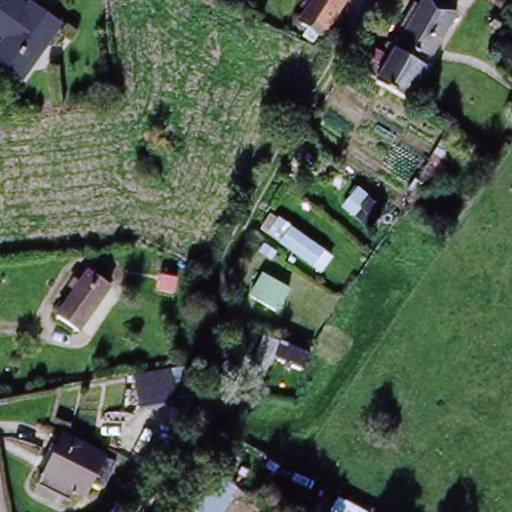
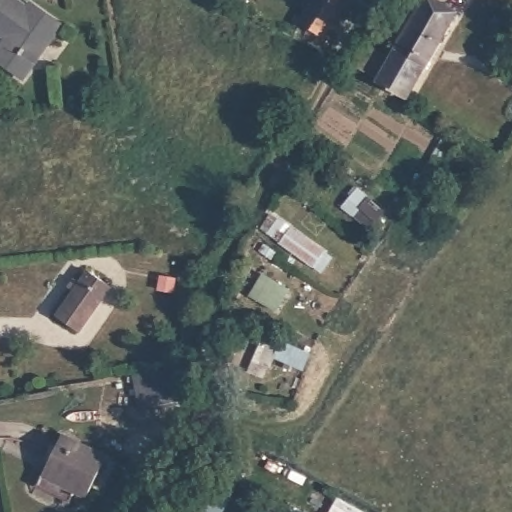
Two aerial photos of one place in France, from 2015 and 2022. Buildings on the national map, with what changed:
unchanged [(61,32),(19,81),(0,64),(0,38),(2,36),(0,35),(0,0),(10,0),(25,10),(30,6),(61,32)]
unchanged [(318,11),(316,10),(322,0),(352,0),(338,23),(336,22),(328,34),(311,22),(318,11)]
unchanged [(440,42),(427,64),(396,47),(399,42),(403,36),(406,30),(400,26),(416,0),(419,0),(423,2),(424,0),(445,0),(459,8),(440,42)]
unchanged [(366,69),(379,46),(393,54),(396,47),(427,64),(409,94),(380,76),(366,69)]
unchanged [(421,177),(451,125),(467,134),(437,187),(427,205),(425,204),(414,197),(426,180),(421,177)]
unchanged [(384,210),(369,230),(341,208),(358,186),(384,210)]
unchanged [(287,222),(270,249),(256,241),(274,213),(287,222)]
unchanged [(112,286),(83,329),(61,314),(90,271),(112,286)]
unchanged [(286,288),(275,311),(250,297),(263,271),(286,288)]
unchanged [(310,357),(303,376),(273,361),(265,380),(248,372),(265,335),(310,357)]
unchanged [(45,491),(61,432),(106,445),(93,491),(81,487),(77,500),(45,491)]

